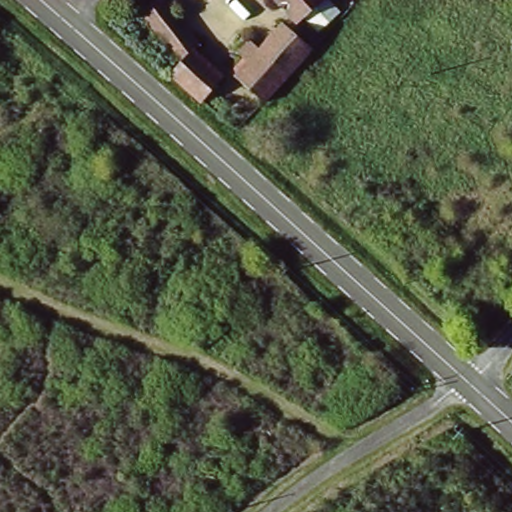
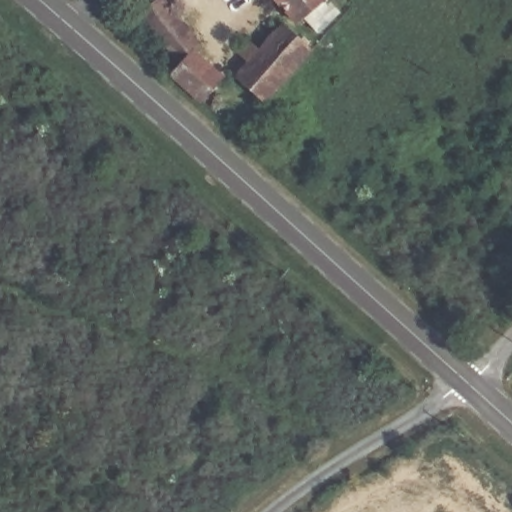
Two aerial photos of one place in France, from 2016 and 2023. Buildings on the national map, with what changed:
unchanged [(298,29),(272,0),(327,0),(329,2),(298,29)]
unchanged [(142,19),(162,4),(196,52),(194,54),(193,56),(178,69),(142,19)]
unchanged [(281,29),(311,54),(266,110),(234,85),(246,70),(234,60),(245,48),(251,53),(256,48),(261,53),(281,29)]
unchanged [(193,56),(223,83),(203,104),(198,110),(167,80),(171,77),(178,69),(193,56)]

